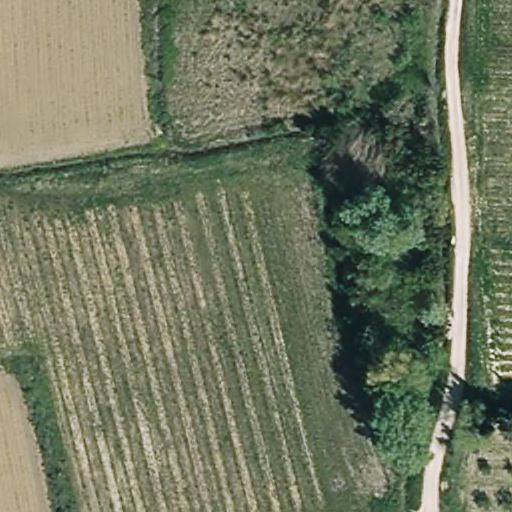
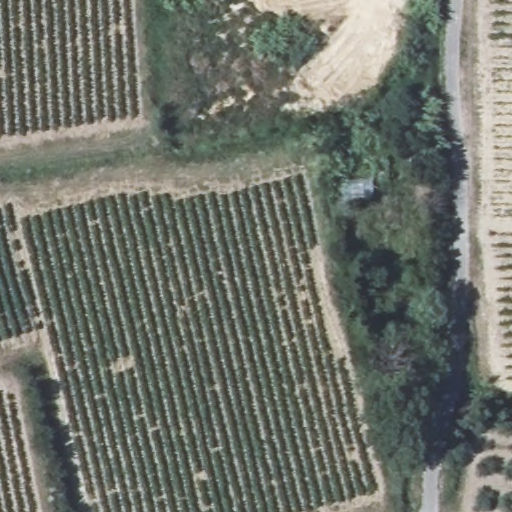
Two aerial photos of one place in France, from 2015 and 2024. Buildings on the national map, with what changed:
unchanged [(381,175),(389,174),(389,180),(382,181),(381,175)]

